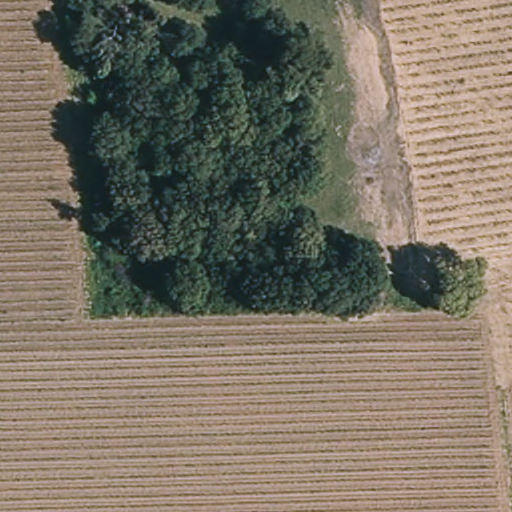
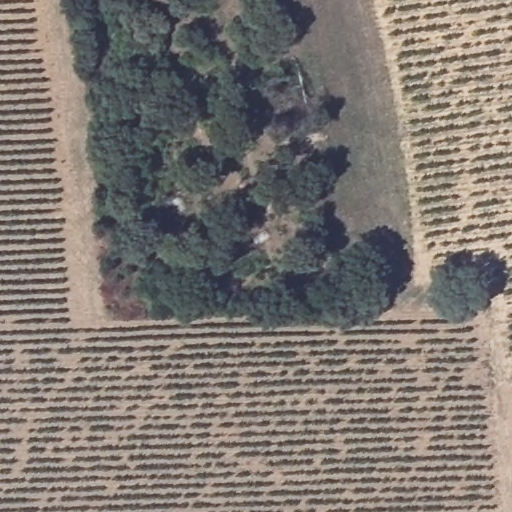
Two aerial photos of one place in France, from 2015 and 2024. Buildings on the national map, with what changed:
[]

